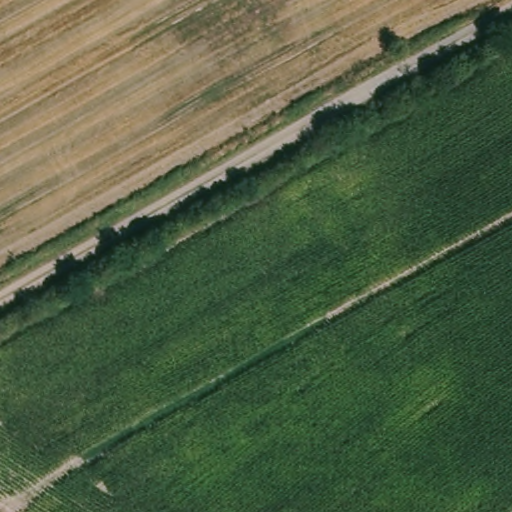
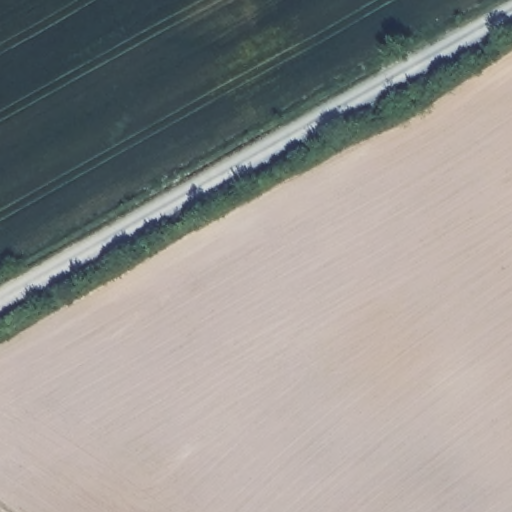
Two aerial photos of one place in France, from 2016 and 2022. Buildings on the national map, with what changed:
[]

